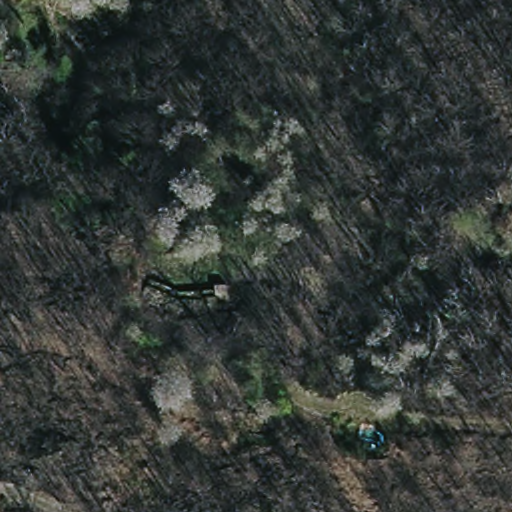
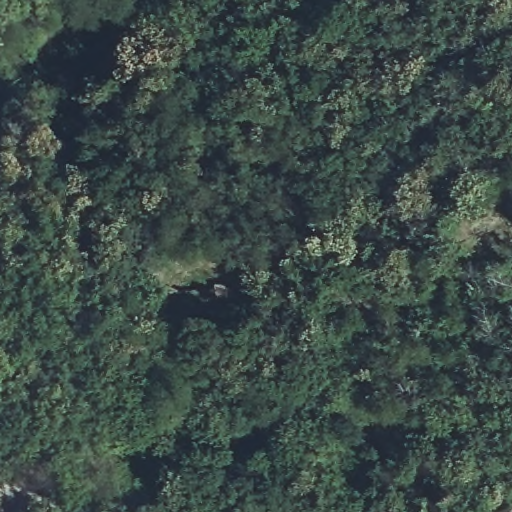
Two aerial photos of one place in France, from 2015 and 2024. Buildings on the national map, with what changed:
unchanged [(304,153),(305,169),(255,167),(221,155),(225,144),(256,156),(290,158),(290,152),(304,153)]

